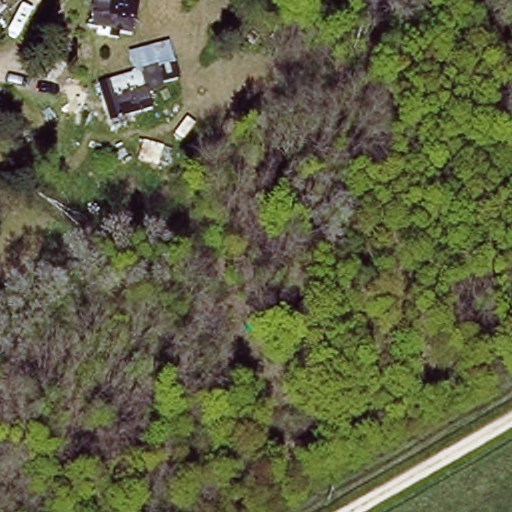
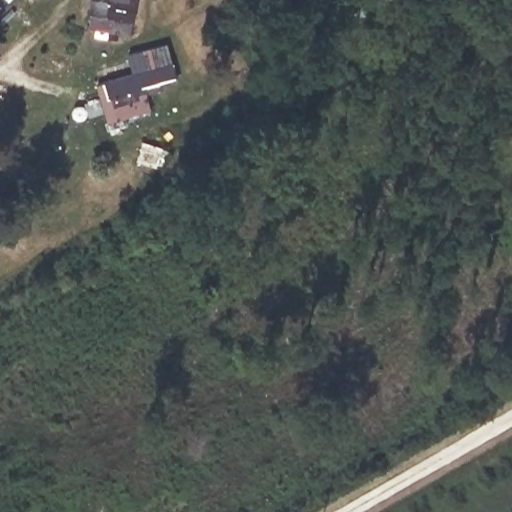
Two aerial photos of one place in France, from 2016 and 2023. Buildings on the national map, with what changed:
unchanged [(0,4),(0,0),(2,0),(3,1),(0,4)]
unchanged [(94,24),(96,0),(137,0),(134,27),(94,24)]
unchanged [(142,69),(139,59),(160,54),(163,64),(177,60),(183,78),(167,80),(168,84),(153,88),(155,105),(119,113),(122,119),(110,123),(99,81),(142,69)]

